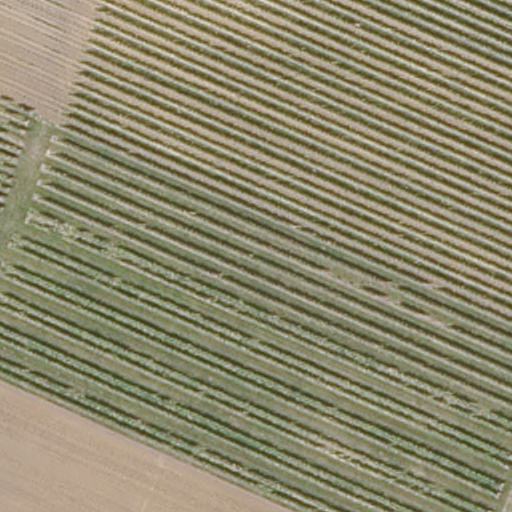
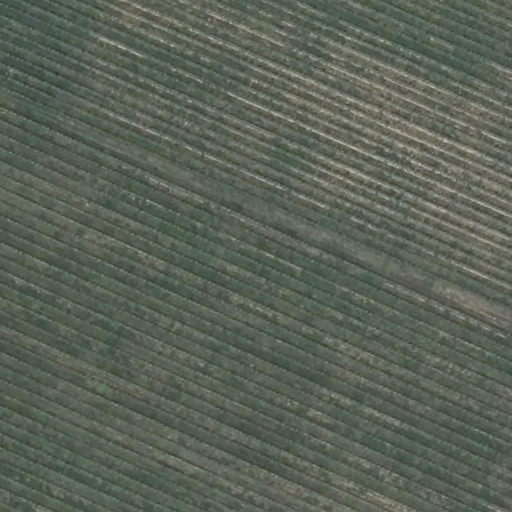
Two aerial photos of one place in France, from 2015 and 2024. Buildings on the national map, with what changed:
[]

